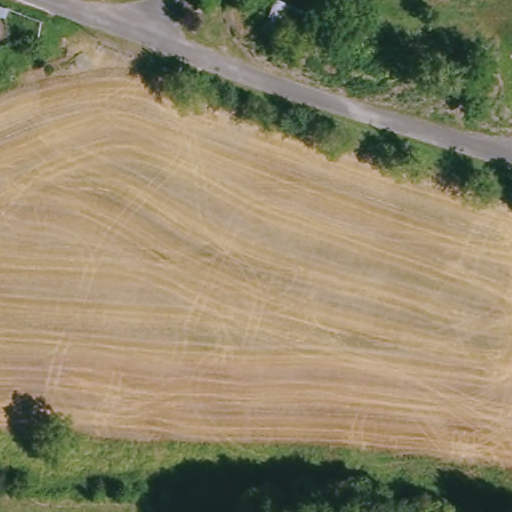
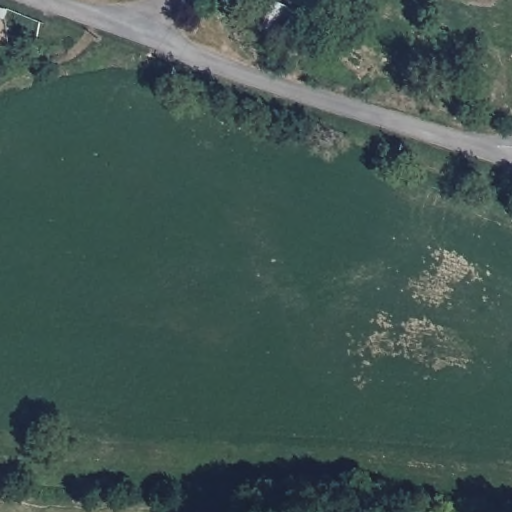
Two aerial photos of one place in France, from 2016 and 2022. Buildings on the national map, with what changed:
unchanged [(304,41),(258,23),(267,0),(285,0),(312,11),(304,41)]

